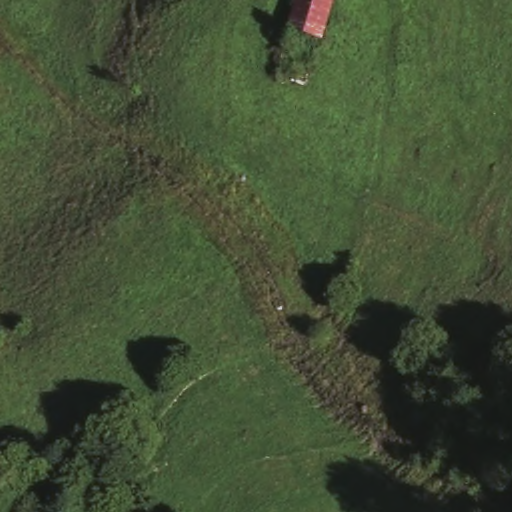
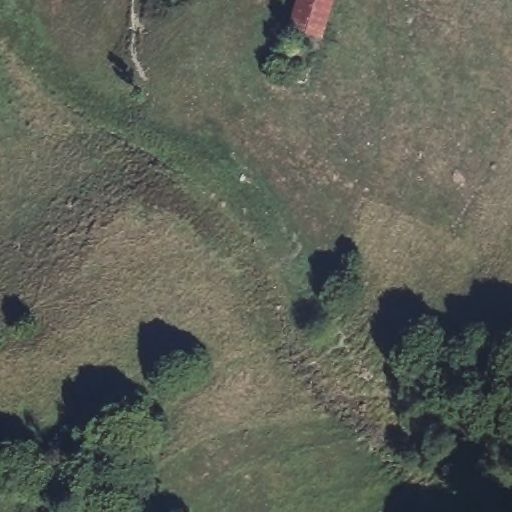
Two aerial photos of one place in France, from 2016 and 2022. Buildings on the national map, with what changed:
unchanged [(289,25),(298,0),(340,0),(327,39),(289,25)]

